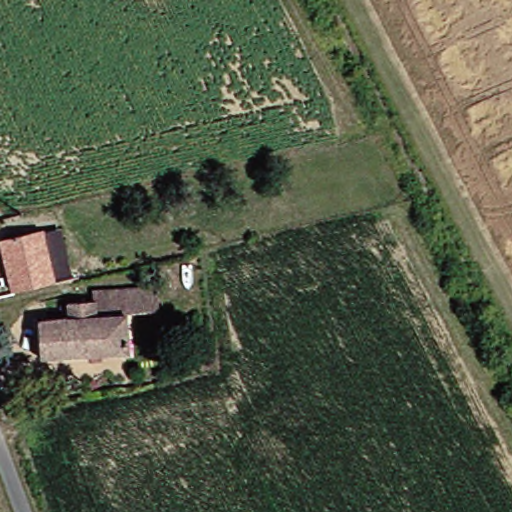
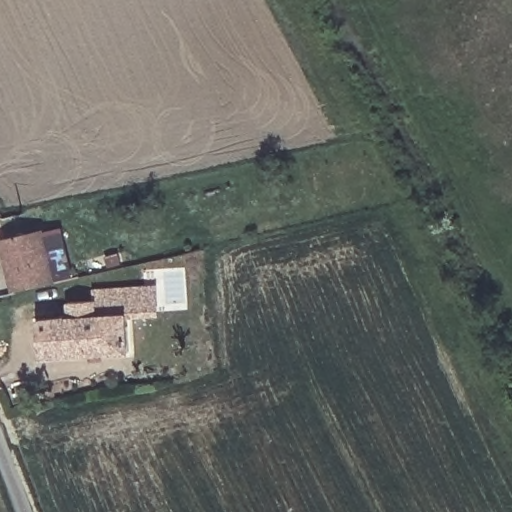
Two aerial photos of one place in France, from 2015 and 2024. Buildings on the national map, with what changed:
unchanged [(0,199),(0,190),(3,198),(0,199)]
unchanged [(0,224),(0,214),(3,223),(0,224)]
unchanged [(27,292),(10,246),(51,234),(64,281),(27,292)]
unchanged [(139,349),(47,358),(45,321),(78,318),(77,305),(100,303),(98,286),(133,284),(136,313),(139,349)]

